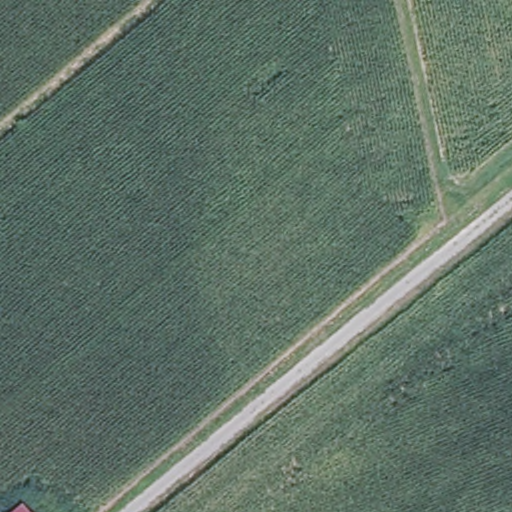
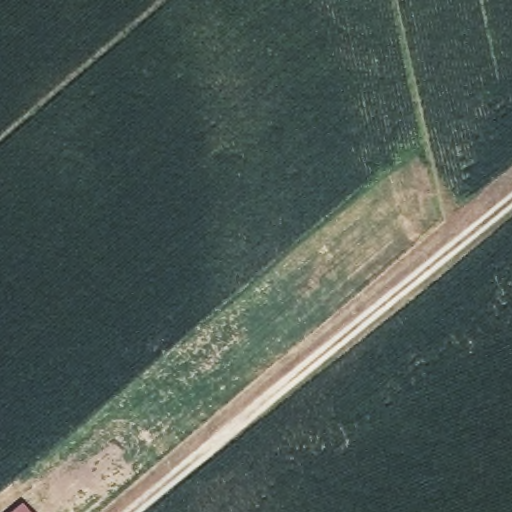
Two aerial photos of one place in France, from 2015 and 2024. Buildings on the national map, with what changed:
unchanged [(23,505),(29,512),(15,512),(23,505)]

